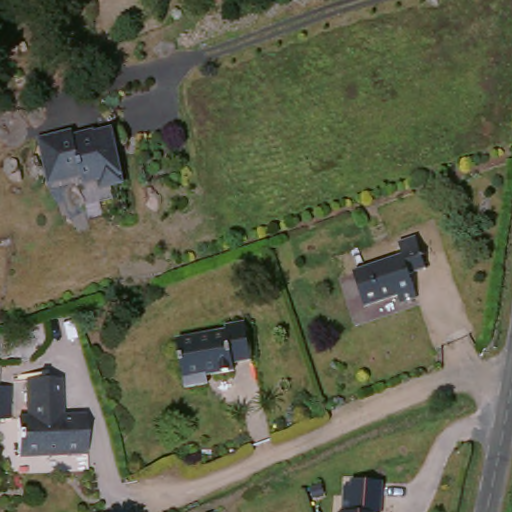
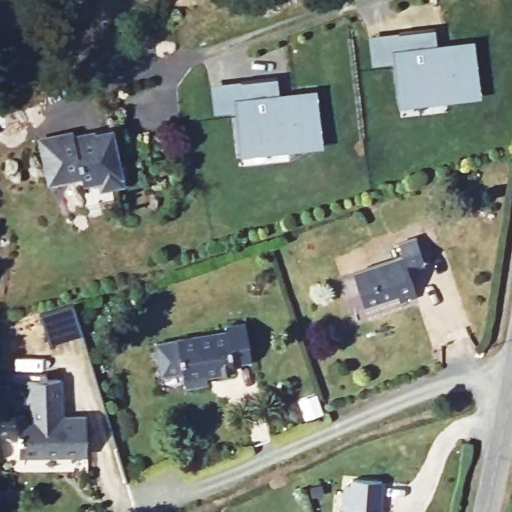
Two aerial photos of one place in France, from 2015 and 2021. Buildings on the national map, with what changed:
new [(436,29),(438,46),(465,43),(471,91),(398,100),(393,65),(372,67),(369,37),(406,32),(426,30),(436,29)]
new [(471,91),(465,43),(474,41),(482,100),(399,110),(398,100),(471,91)]
new [(278,78),(279,95),(308,91),(313,140),(239,149),(236,114),(214,115),(211,86),(249,81),(268,79),(278,78)]
new [(313,140),(308,91),(317,90),(324,149),(241,159),(239,149),(313,140)]
unchanged [(62,145),(79,141),(81,150),(114,142),(124,189),(105,192),(104,184),(85,187),(84,181),(54,187),(46,148),(62,145)]
unchanged [(419,300),(403,305),(402,300),(367,309),(357,273),(405,260),(401,245),(422,239),(431,271),(413,276),(419,300)]
new [(73,304),(83,335),(49,346),(40,315),(73,304)]
unchanged [(252,362),(233,365),(234,373),(207,377),(208,385),(184,388),(178,341),(227,334),(226,328),(246,325),(252,362)]
unchanged [(91,456),(24,458),(23,421),(34,420),(33,382),(64,381),(66,419),(90,418),(91,456)]
unchanged [(8,420),(0,420),(0,389),(9,389),(8,420)]
unchanged [(384,495),(383,512),(347,512),(348,499),(354,500),(354,493),(384,495)]

